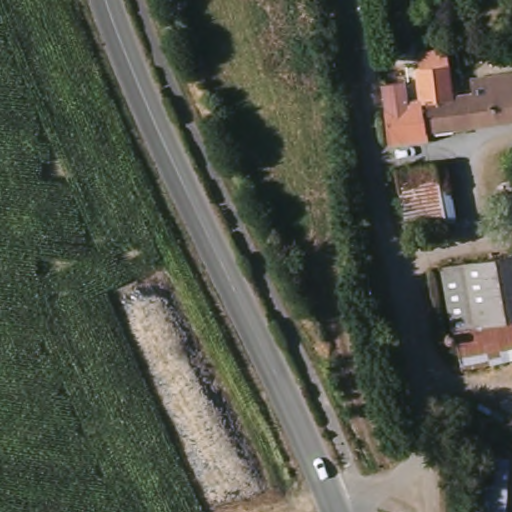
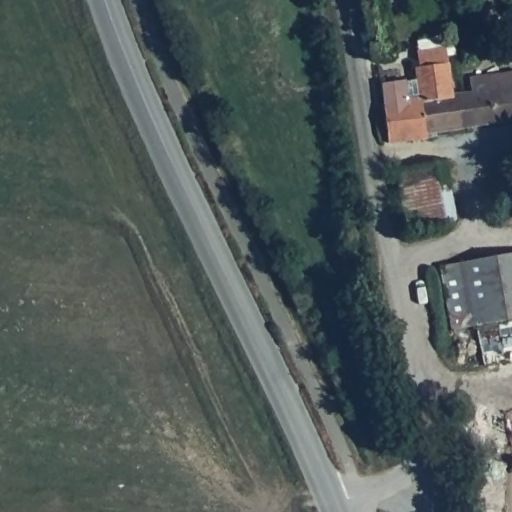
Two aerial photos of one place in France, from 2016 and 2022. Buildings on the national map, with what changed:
unchanged [(417,102),(416,95),(422,95),(413,48),(441,44),(448,85),(459,84),(467,82),(468,93),(470,102),(452,105),(456,126),(439,129),(441,137),(397,145),(391,107),(417,102)]
unchanged [(456,126),(452,105),(470,102),(468,93),(473,92),(472,76),(490,74),(489,64),(508,61),(512,60),(512,119),(456,126)]
unchanged [(378,82),(402,80),(407,104),(391,107),(397,145),(387,145),(378,82)]
unchanged [(444,161),(455,220),(421,226),(410,167),(444,161)]
unchanged [(476,322),(465,260),(512,251),(512,316),(476,322)]
unchanged [(465,260),(476,322),(512,316),(512,358),(462,365),(458,339),(448,340),(436,265),(465,260)]
unchanged [(508,512),(471,512),(473,458),(511,460),(508,512)]

